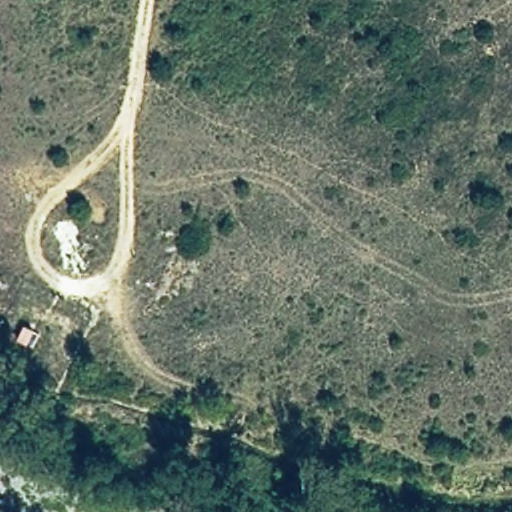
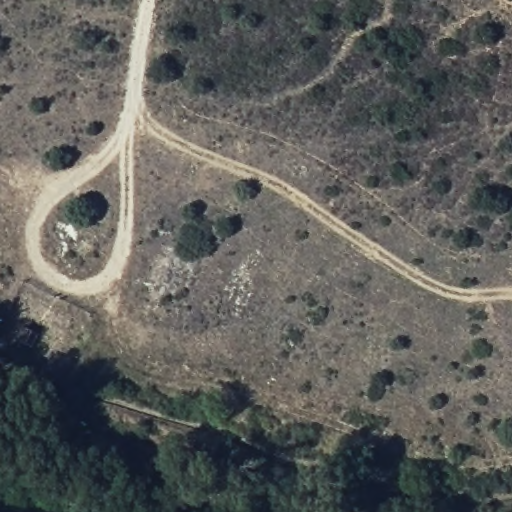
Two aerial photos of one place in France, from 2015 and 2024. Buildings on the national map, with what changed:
unchanged [(36,325),(24,344),(11,337),(20,320),(36,325)]

